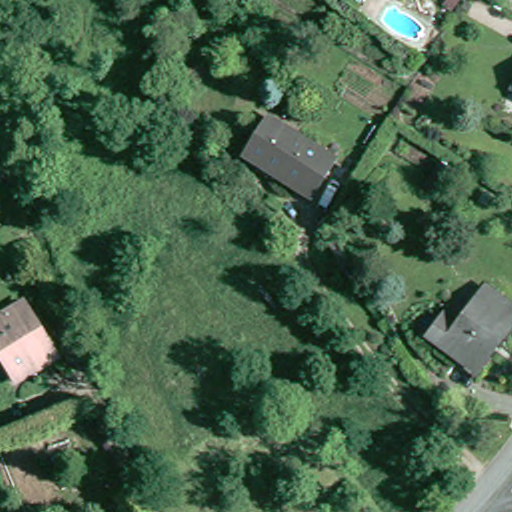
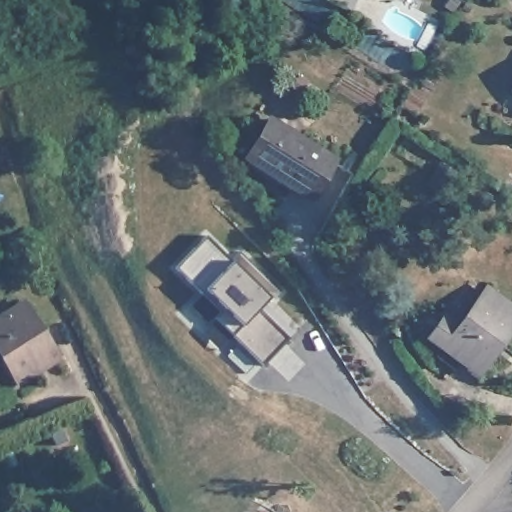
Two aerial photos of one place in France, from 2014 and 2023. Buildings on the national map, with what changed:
unchanged [(332,165),(309,201),(279,180),(280,178),(269,170),(267,173),(246,158),(268,123),(332,165)]
new [(232,260),(270,296),(257,308),(289,337),(262,364),(214,317),(220,311),(175,266),(206,235),(232,260)]
unchanged [(455,337),(484,299),(512,320),(512,327),(494,351),(491,349),(472,374),(475,377),(474,379),(425,345),(439,325),(455,337)]
unchanged [(0,362),(0,321),(32,308),(57,366),(32,378),(10,386),(7,379),(0,362)]

